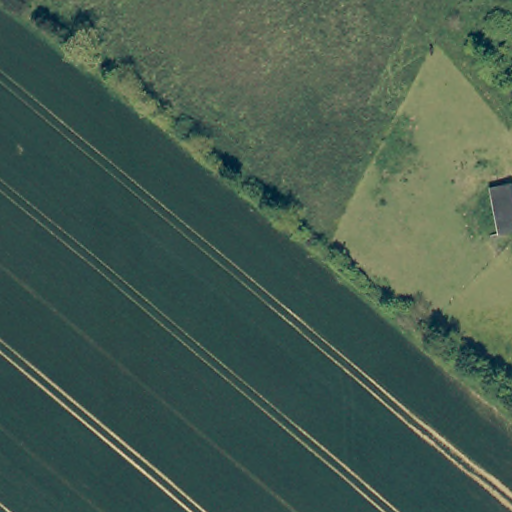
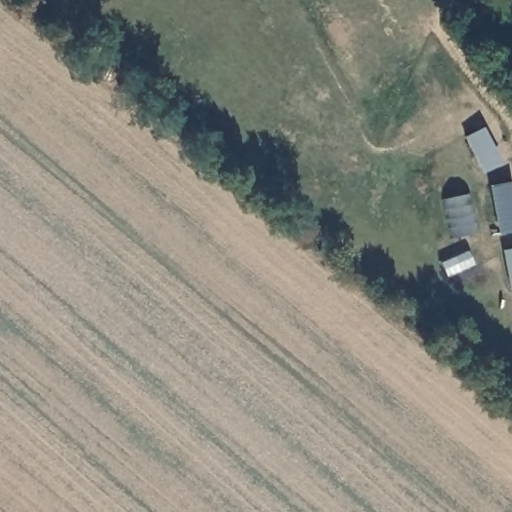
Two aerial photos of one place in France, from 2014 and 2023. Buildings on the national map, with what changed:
new [(483,174),(465,138),(483,129),(501,165),(483,174)]
unchanged [(512,186),(512,232),(503,234),(495,190),(512,186)]
new [(502,251),(512,249),(512,291),(510,292),(502,251)]

